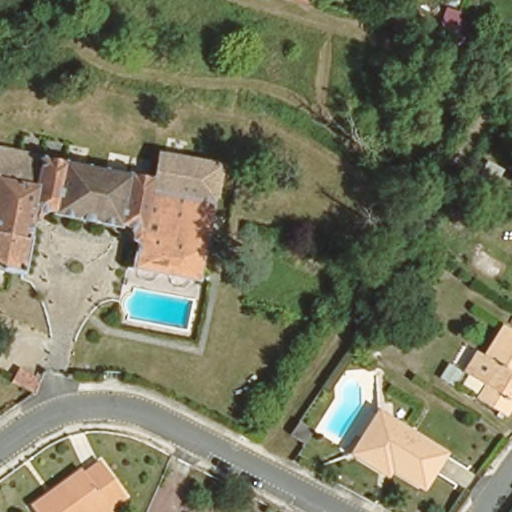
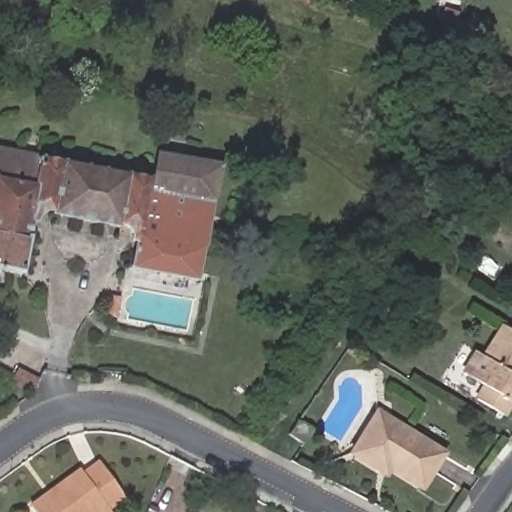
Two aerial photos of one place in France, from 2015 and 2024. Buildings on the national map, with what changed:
unchanged [(310,2),(303,0),(311,0),(310,2)]
unchanged [(434,34),(392,19),(396,6),(433,18),(440,0),(460,0),(462,1),(459,9),(470,12),(461,44),(434,34)]
unchanged [(464,46),(470,35),(512,62),(512,79),(505,74),(464,46)]
unchanged [(139,239),(131,237),(134,224),(125,222),(124,227),(98,222),(97,224),(77,220),(78,216),(55,211),(55,207),(48,206),(45,221),(36,219),(24,272),(0,267),(0,164),(3,147),(49,157),(151,177),(160,142),(178,147),(228,157),(201,282),(133,267),(139,239)]
unchanged [(512,391),(508,397),(512,400),(512,401),(504,413),(477,396),(484,384),(466,372),(477,352),(485,357),(504,328),(512,333),(512,391)]
unchanged [(441,451),(418,488),(353,447),(376,412),(441,451)]
unchanged [(320,429),(314,438),(296,427),(304,418),(320,429)]
unchanged [(41,512),(32,501),(82,465),(85,468),(101,455),(126,487),(108,500),(114,507),(108,512),(41,512)]

